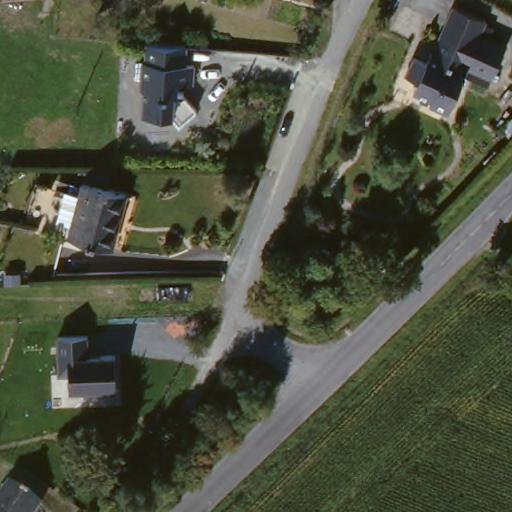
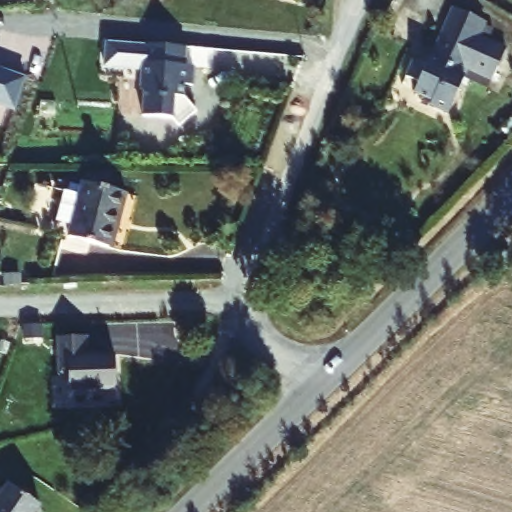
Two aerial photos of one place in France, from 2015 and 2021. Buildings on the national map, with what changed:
unchanged [(488,98),(466,86),(439,129),(422,119),(424,115),(405,104),(411,95),(400,88),(413,69),(422,75),(427,68),(431,70),(443,49),(459,22),(487,38),(478,52),(506,68),(488,98)]
unchanged [(142,38),(187,39),(184,56),(194,59),(192,83),(186,82),(184,91),(177,92),(175,115),(138,117),(142,38)]
new [(16,112),(0,107),(0,69),(28,77),(16,112)]
unchanged [(128,186),(109,241),(71,229),(75,215),(60,209),(70,180),(85,184),(89,173),(128,186)]
unchanged [(91,336),(91,353),(115,353),(114,389),(53,389),(54,336),(91,336)]
unchanged [(35,512),(0,512),(0,498),(10,484),(39,505),(35,512)]

